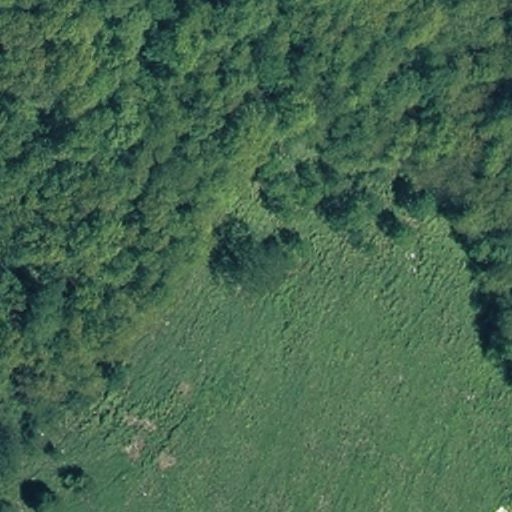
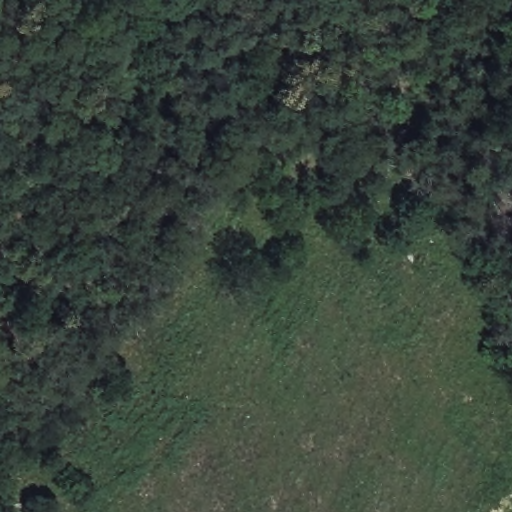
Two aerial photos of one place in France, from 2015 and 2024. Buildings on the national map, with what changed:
[]

